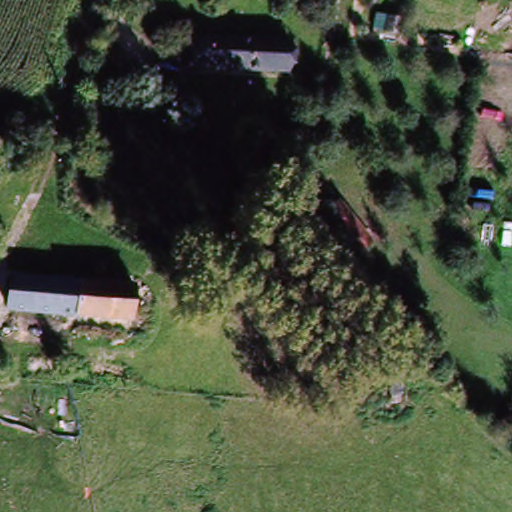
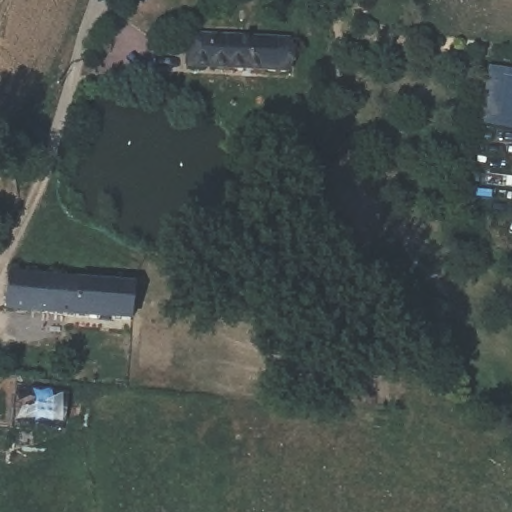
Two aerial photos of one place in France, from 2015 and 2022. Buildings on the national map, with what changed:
unchanged [(292,48),(289,79),(192,70),(195,40),(292,48)]
new [(512,69),(512,131),(477,125),(487,65),(512,69)]
unchanged [(378,243),(347,263),(314,222),(345,201),(378,243)]
unchanged [(2,315),(7,280),(72,285),(75,274),(82,275),(93,276),(93,284),(132,288),(127,327),(87,324),(2,315)]

